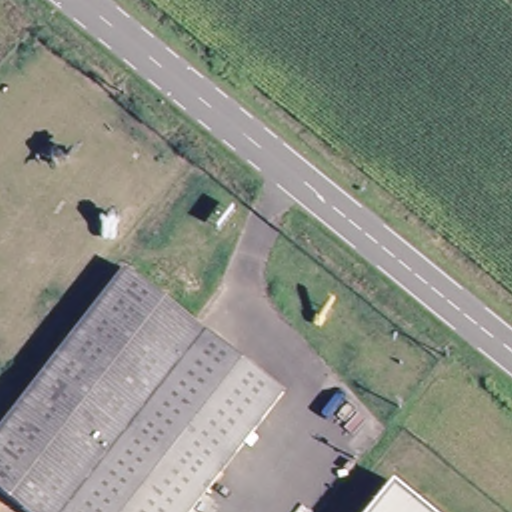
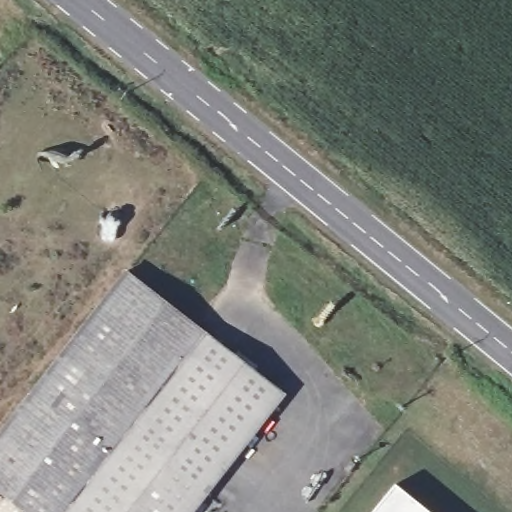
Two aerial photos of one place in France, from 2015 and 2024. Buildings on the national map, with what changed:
unchanged [(180,512),(38,512),(0,480),(0,420),(125,267),(280,391),(180,512)]
unchanged [(378,512),(398,488),(428,512),(378,512)]

